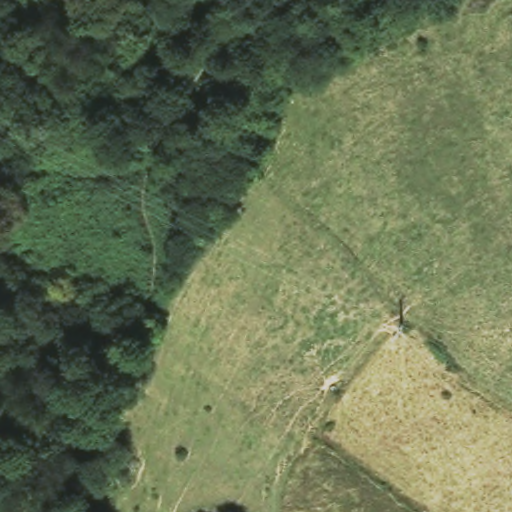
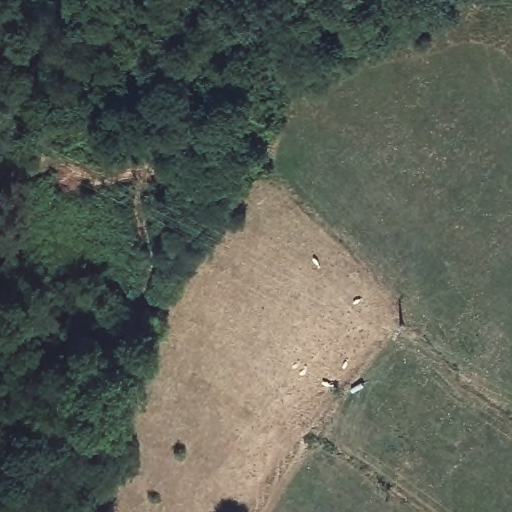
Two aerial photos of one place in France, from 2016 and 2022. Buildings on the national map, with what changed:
[]

